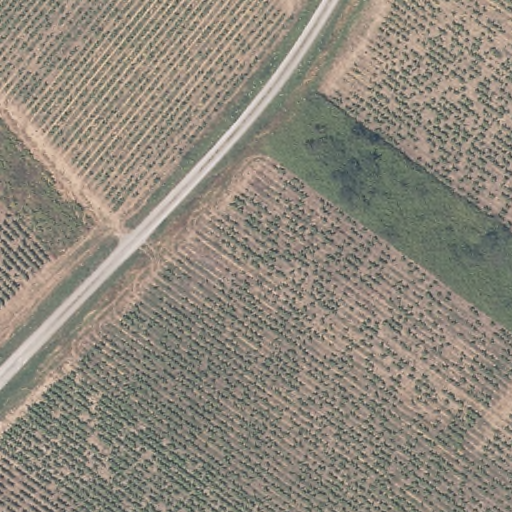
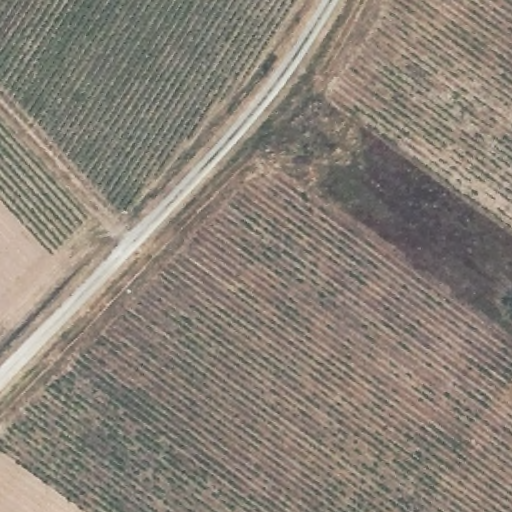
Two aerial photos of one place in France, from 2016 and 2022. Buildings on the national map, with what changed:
[]

